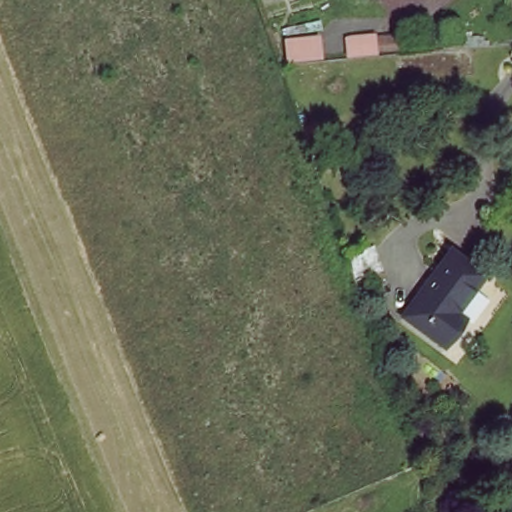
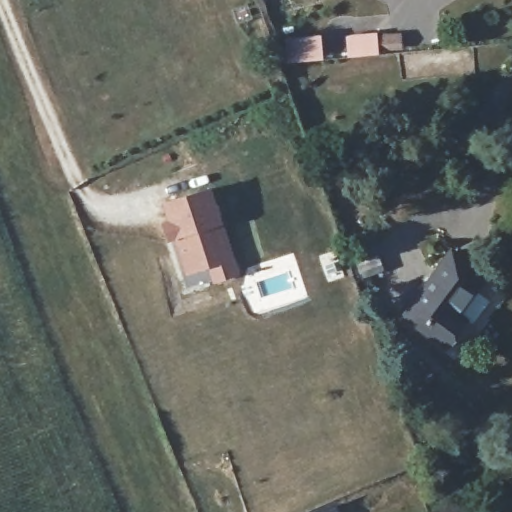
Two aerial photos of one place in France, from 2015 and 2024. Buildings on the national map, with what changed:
new [(185,274),(174,239),(169,240),(163,222),(169,220),(163,200),(213,185),(224,224),(241,274),(214,283),(190,289),(185,274)]
unchanged [(490,281),(464,314),(474,323),(450,348),(407,312),(455,253),(490,281)]

